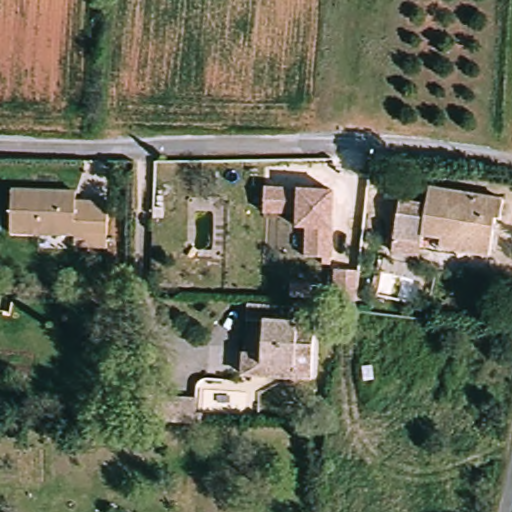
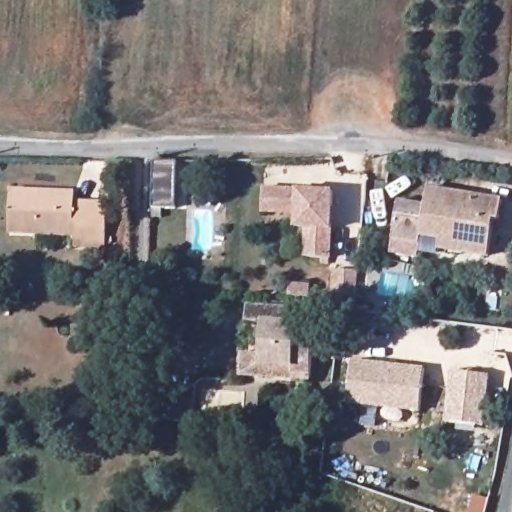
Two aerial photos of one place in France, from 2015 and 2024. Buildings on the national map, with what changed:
unchanged [(321,263),(322,257),(305,257),(306,228),(296,227),(296,213),(262,212),(263,189),(333,191),(330,258),(329,264),(321,263)]
unchanged [(80,210),(112,212),(108,259),(85,257),(86,243),(14,238),(17,199),(81,201),(80,210)]
unchanged [(420,265),(421,257),(394,253),(402,210),(428,213),(432,200),(503,214),(499,235),(491,234),(485,266),(462,262),(461,270),(420,265)]
unchanged [(354,300),(347,300),(332,300),(334,270),(352,270),(359,270),(354,300)]
unchanged [(248,305),(302,308),(301,323),(323,323),(318,386),(242,381),(248,305)]
new [(410,414),(352,408),(357,365),(429,372),(427,393),(424,415),(410,414)]
new [(490,377),(485,428),(447,425),(452,373),(490,377)]

